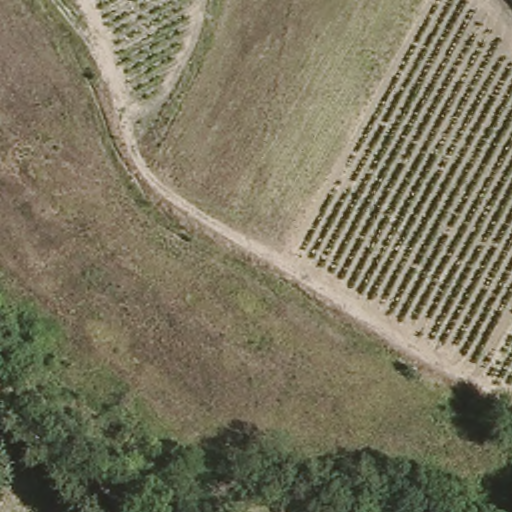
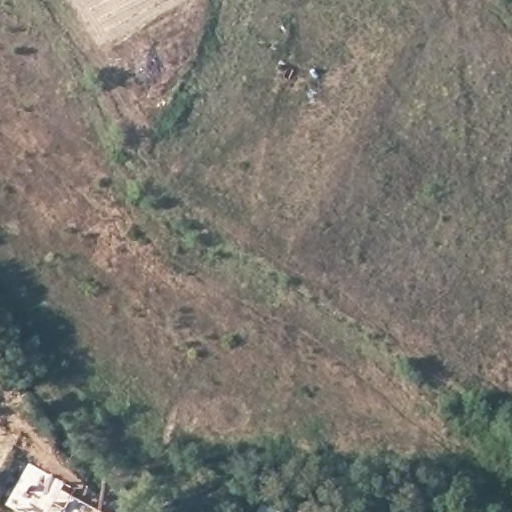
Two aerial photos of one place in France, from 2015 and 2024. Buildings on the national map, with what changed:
new [(71,495),(101,512),(17,512),(5,505),(29,463),(73,487),(71,495)]

